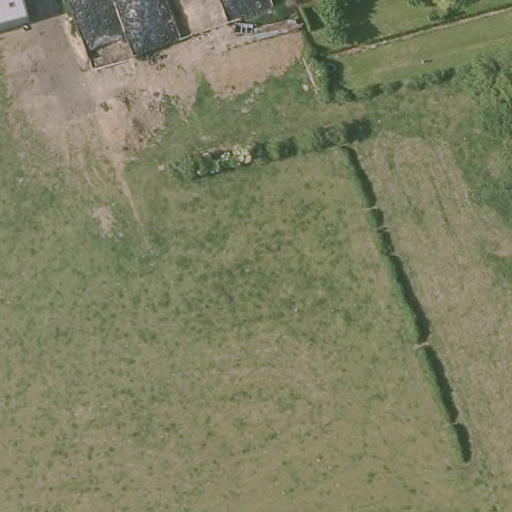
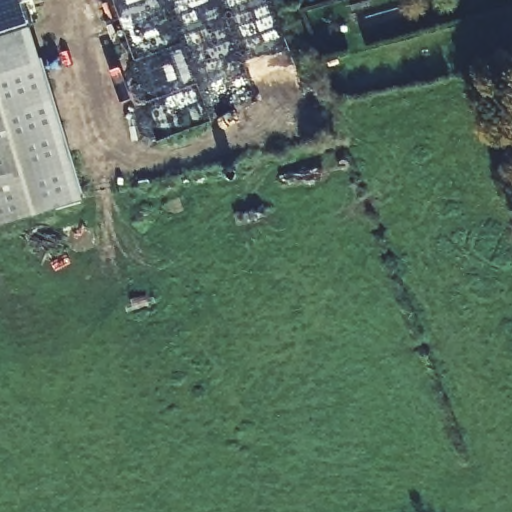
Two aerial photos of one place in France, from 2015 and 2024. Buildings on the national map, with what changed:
new [(30,23),(0,32),(0,0),(23,0),(30,23)]
new [(82,198),(0,222),(0,70),(41,58),(82,198)]

